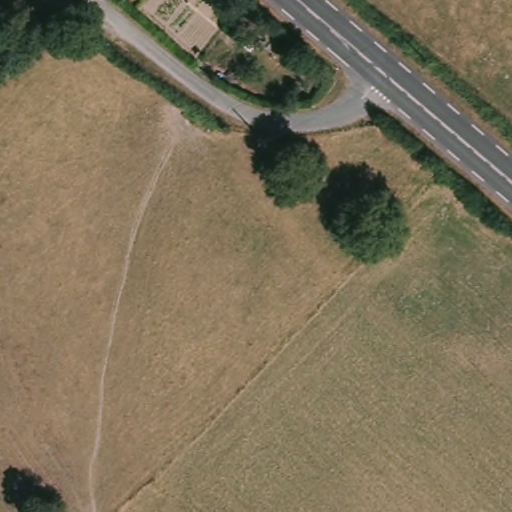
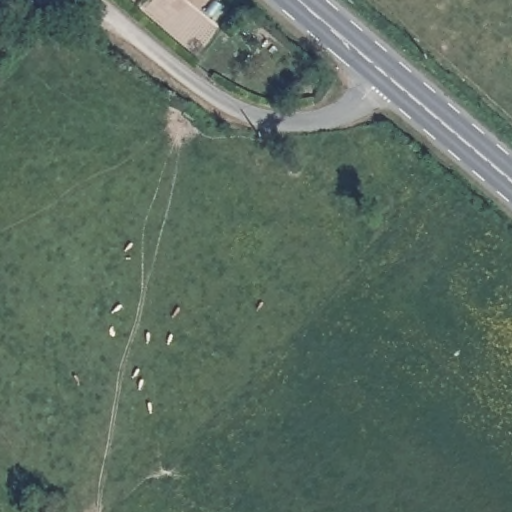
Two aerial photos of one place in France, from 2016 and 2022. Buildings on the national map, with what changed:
[]

